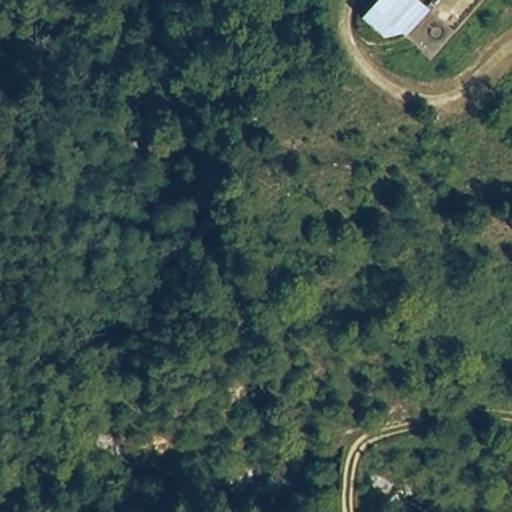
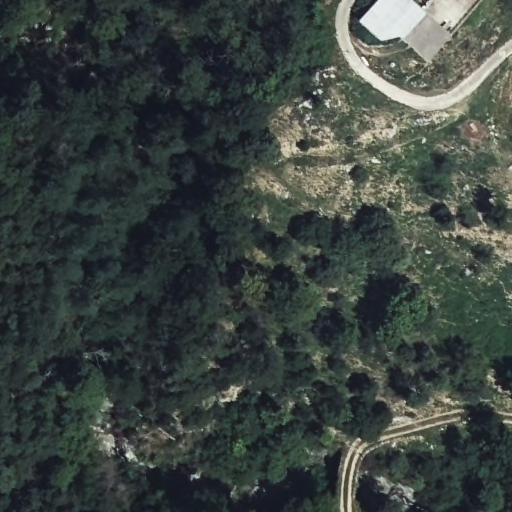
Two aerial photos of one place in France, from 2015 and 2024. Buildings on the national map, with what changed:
unchanged [(398,40),(383,47),(357,25),(379,0),(416,0),(455,35),(428,64),(398,40)]

